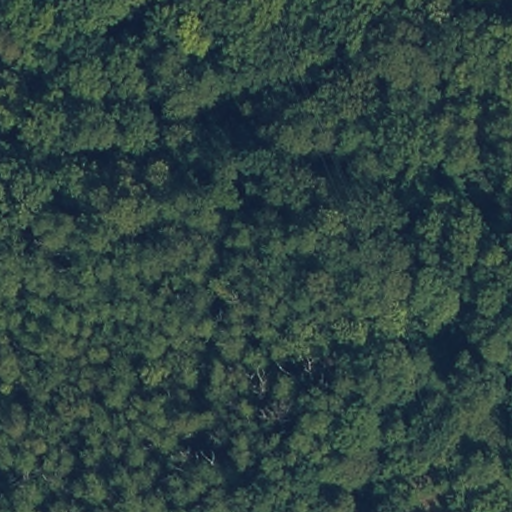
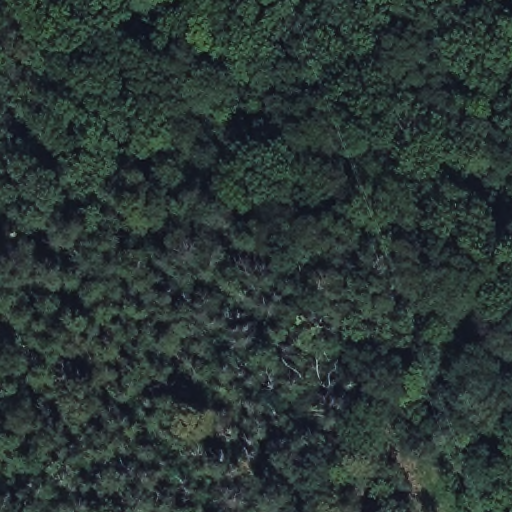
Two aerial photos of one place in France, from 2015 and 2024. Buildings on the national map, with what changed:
[]

